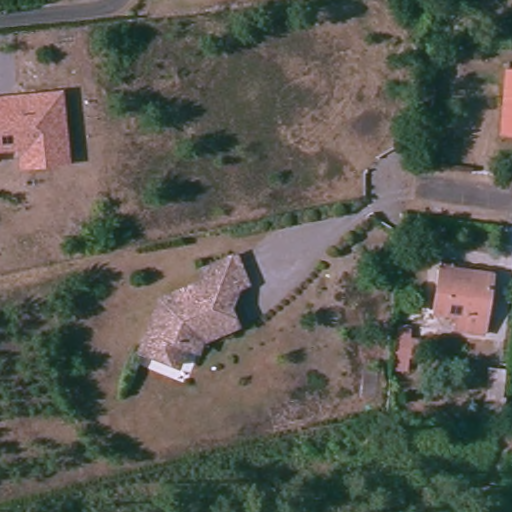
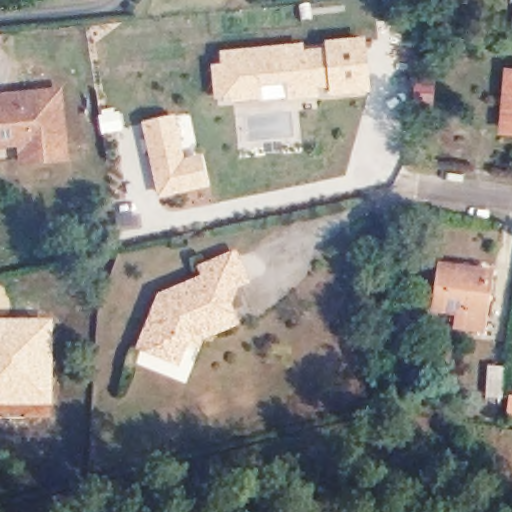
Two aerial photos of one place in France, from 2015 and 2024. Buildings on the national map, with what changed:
new [(222,65),(220,54),(304,44),(305,52),(326,50),(325,42),(367,39),(371,94),(331,97),(330,88),(321,89),(321,99),(289,102),(287,84),(264,86),(265,99),(231,102),(231,97),(216,101),(212,66),(222,65)]
unchanged [(502,121),(506,72),(512,72),(512,130),(501,130),(502,121)]
unchanged [(62,90),(70,164),(16,168),(15,150),(0,151),(0,96),(62,90)]
new [(175,117),(185,159),(202,155),(210,189),(159,200),(142,124),(175,117)]
unchanged [(194,342),(188,356),(176,351),(168,371),(130,355),(150,307),(156,305),(155,302),(192,283),(187,274),(221,258),(235,285),(211,297),(214,302),(221,318),(225,327),(194,342)]
unchanged [(455,331),(456,316),(437,313),(442,272),(491,276),(487,317),(485,333),(455,331)]
new [(52,320),(51,408),(0,407),(0,319),(52,320)]

